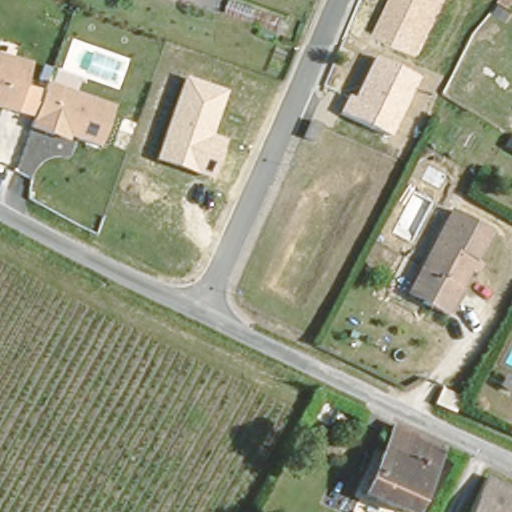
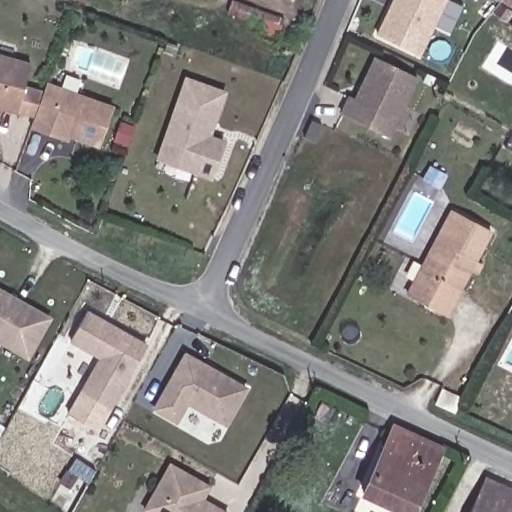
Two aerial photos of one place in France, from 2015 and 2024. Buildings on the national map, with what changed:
unchanged [(280,32),(228,13),(233,0),(239,0),(285,17),(280,32)]
unchanged [(420,55),(376,34),(393,0),(447,0),(420,55)]
unchanged [(503,13),(491,7),(496,0),(511,0),(503,13)]
unchanged [(0,109),(0,53),(33,61),(19,113),(0,109)]
unchanged [(374,56),(419,77),(390,137),(340,113),(349,94),(354,98),(374,56)]
unchanged [(226,140),(212,179),(156,160),(185,76),(228,91),(213,135),(226,140)]
unchanged [(101,148),(70,137),(67,143),(30,131),(46,81),(116,104),(101,148)]
unchanged [(445,218),(451,207),(489,226),(484,237),(476,253),(481,256),(476,268),(470,265),(460,284),(464,286),(449,314),(423,300),(407,293),(413,281),(445,218)]
new [(28,362),(0,346),(0,295),(50,323),(28,362)]
new [(146,349),(99,435),(70,419),(101,362),(71,345),(88,316),(146,349)]
new [(187,355),(250,386),(228,420),(189,400),(178,420),(156,408),(187,355)]
unchanged [(458,390),(476,399),(469,414),(449,405),(458,390)]
unchanged [(414,512),(411,512),(366,488),(401,421),(448,444),(414,512)]
new [(228,512),(155,512),(145,506),(171,460),(211,483),(204,496),(212,500),(229,510),(228,512)]
unchanged [(512,490),(512,512),(467,512),(483,478),(512,490)]

